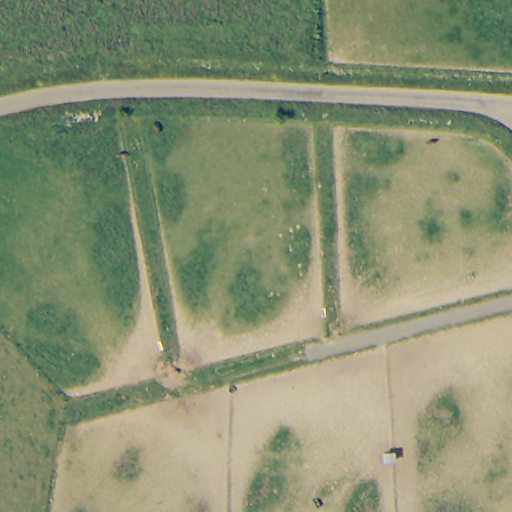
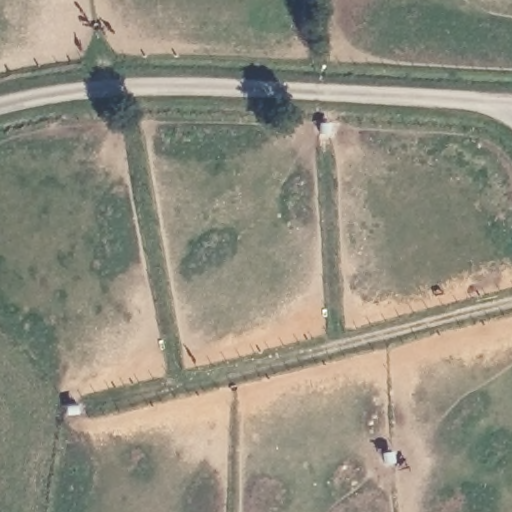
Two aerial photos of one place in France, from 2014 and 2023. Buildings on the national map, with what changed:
[]

